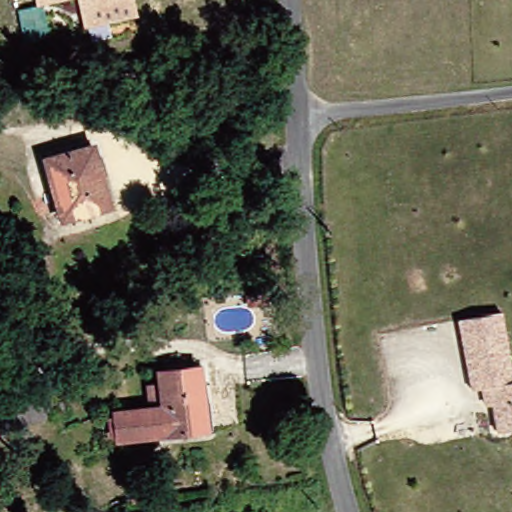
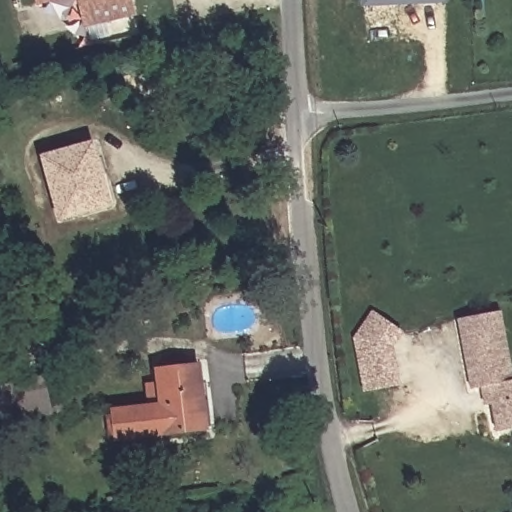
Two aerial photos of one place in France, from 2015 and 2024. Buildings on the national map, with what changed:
unchanged [(46,5),(51,31),(24,38),(16,9),(36,3),(35,0),(66,0),(46,5)]
unchanged [(137,16),(86,28),(76,0),(133,0),(137,16)]
new [(447,1),(365,4),(365,0),(447,0),(447,1)]
unchanged [(42,160),(82,150),(92,148),(95,156),(98,155),(111,207),(105,208),(56,220),(42,160)]
unchanged [(508,308),(512,337),(512,392),(499,393),(494,393),(492,382),(475,384),(465,314),(508,308)]
new [(367,392),(360,352),(366,327),(376,312),(402,331),(391,347),(398,386),(367,392)]
unchanged [(108,414),(157,407),(152,371),(192,366),(195,381),(204,379),(211,428),(202,430),(112,443),(108,414)]
unchanged [(38,423),(0,430),(0,390),(20,386),(32,384),(38,423)]
unchanged [(499,393),(512,392),(512,427),(499,428),(494,393),(499,393)]

